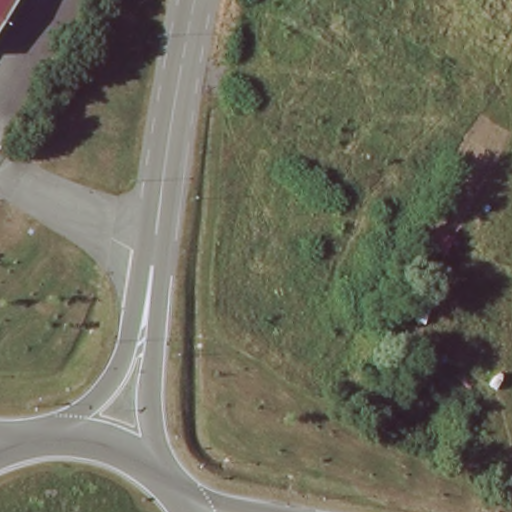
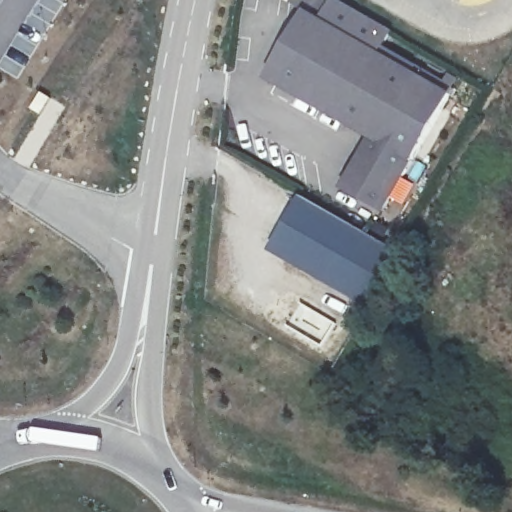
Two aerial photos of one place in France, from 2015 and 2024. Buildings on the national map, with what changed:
demolished [(0,0),(10,0),(0,16),(0,0)]
new [(453,94),(387,214),(341,190),(369,139),(266,78),(306,11),(453,94)]
new [(290,186),(385,247),(352,300),(256,238),(290,186)]

